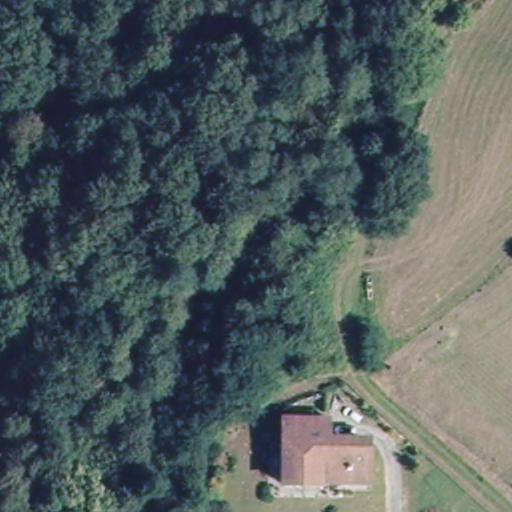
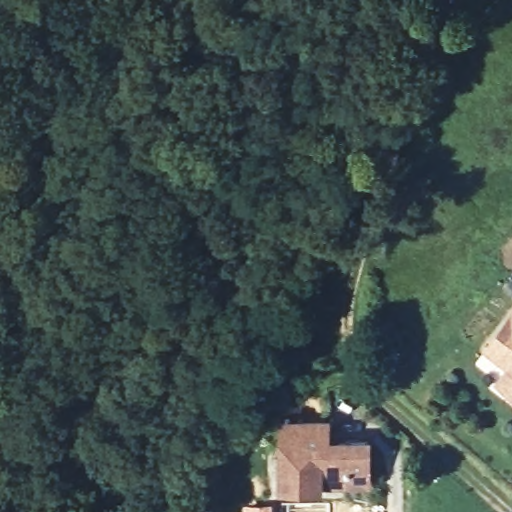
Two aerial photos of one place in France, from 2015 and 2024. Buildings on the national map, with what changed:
new [(497,380),(507,367),(483,347),(512,311),(512,392),(497,380)]
unchanged [(283,492),(283,487),(284,426),(329,426),(328,445),(340,446),(368,446),(367,487),(321,487),(321,492),(283,492)]

